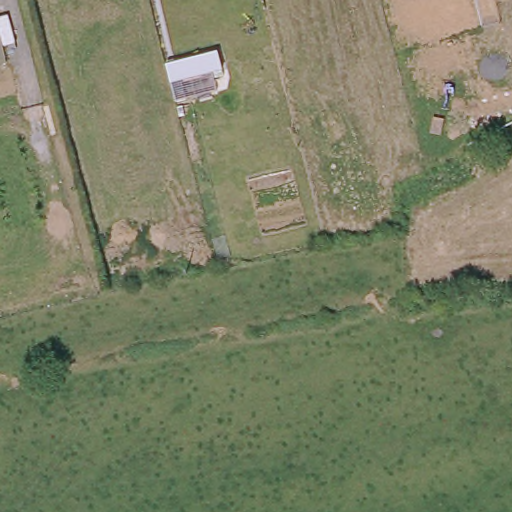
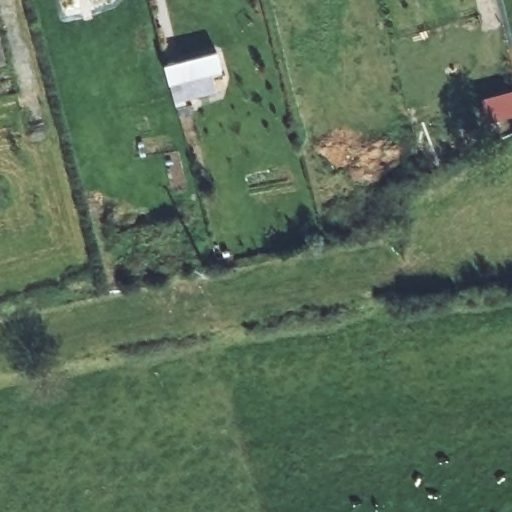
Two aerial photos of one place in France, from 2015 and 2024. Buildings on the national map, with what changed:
unchanged [(215,57),(220,74),(169,88),(165,70),(215,57)]
new [(512,118),(489,124),(483,100),(512,93),(512,118)]

